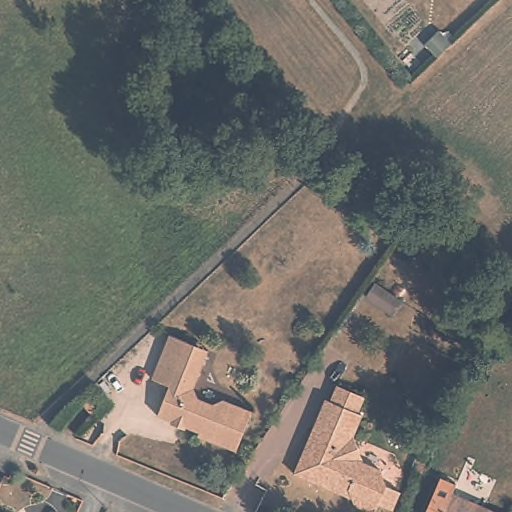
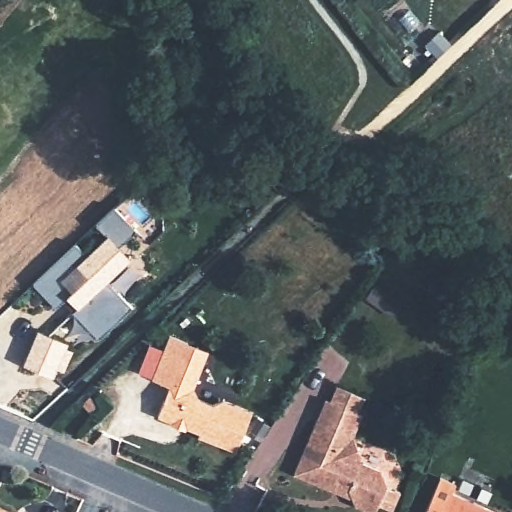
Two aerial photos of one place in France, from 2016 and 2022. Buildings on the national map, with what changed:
new [(78,242),(89,253),(109,234),(98,223),(118,205),(140,228),(121,245),(133,258),(110,279),(135,307),(101,339),(74,311),(80,306),(70,296),(58,307),(35,283),(78,242)]
new [(39,330),(69,343),(55,377),(24,363),(39,330)]
unchanged [(199,400),(215,406),(224,402),(252,414),(236,452),(199,436),(201,432),(158,414),(170,386),(153,378),(172,334),(191,342),(212,351),(207,361),(196,387),(199,400)]
unchanged [(350,435),(358,454),(355,461),(375,468),(384,486),(399,492),(392,511),(377,504),(373,512),(366,512),(355,507),(350,489),(338,485),(336,489),(294,473),(322,399),(327,401),(333,385),(359,395),(353,411),(358,412),(350,435)]
unchanged [(95,398),(101,404),(95,411),(88,405),(95,398)]
unchanged [(438,480),(455,487),(451,495),(490,512),(424,512),(438,480)]
unchanged [(9,512),(0,512),(0,508),(9,512)]

